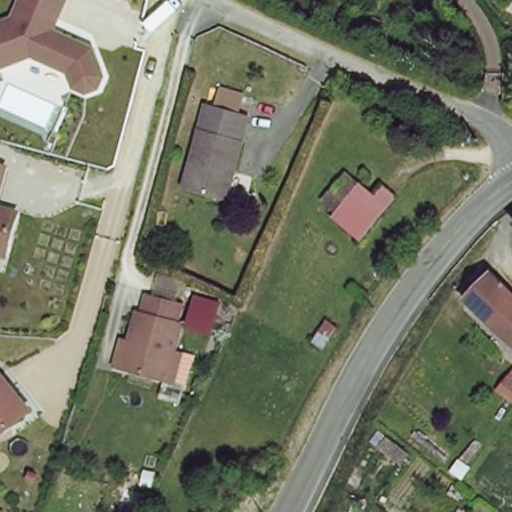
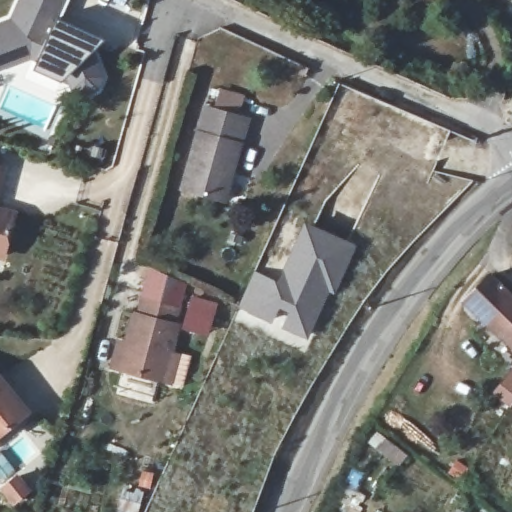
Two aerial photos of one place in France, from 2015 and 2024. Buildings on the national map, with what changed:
unchanged [(15,0),(64,0),(52,28),(92,43),(104,71),(103,81),(87,90),(71,85),(68,71),(30,54),(0,66),(0,16),(9,13),(15,0)]
unchanged [(182,192),(206,109),(249,121),(225,204),(182,192)]
unchanged [(4,163),(0,185),(0,162),(4,163)]
demolished [(340,210),(362,183),(376,193),(380,188),(387,180),(398,189),(391,197),(365,229),(340,210)]
unchanged [(20,208),(9,254),(0,252),(0,203),(20,208)]
unchanged [(512,209),(512,223),(506,213),(512,209)]
new [(334,292),(329,289),(308,338),(249,309),(240,305),(254,270),(278,280),(306,222),(356,244),(334,292)]
unchanged [(490,270),(512,293),(512,318),(497,333),(459,297),(490,270)]
new [(218,304),(210,333),(179,324),(187,295),(218,304)]
unchanged [(169,387),(160,384),(116,372),(106,369),(114,344),(124,347),(134,314),(139,315),(144,299),(177,309),(171,326),(178,328),(169,358),(177,361),(169,387)]
unchanged [(512,318),(512,347),(497,333),(512,318)]
unchanged [(512,386),(501,377),(511,363),(512,364),(512,386)]
unchanged [(33,409),(0,433),(0,373),(33,409)]
unchanged [(512,386),(512,394),(509,392),(512,386)]

